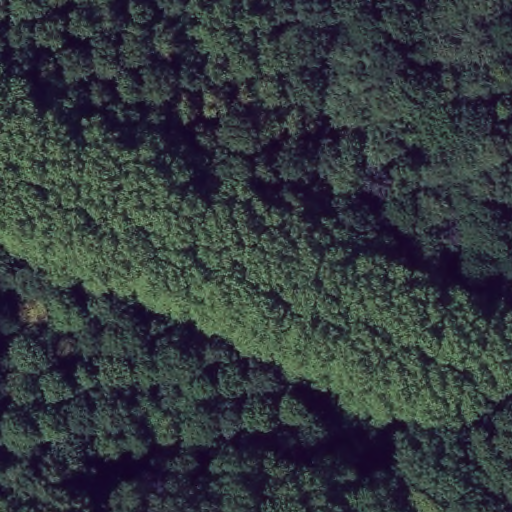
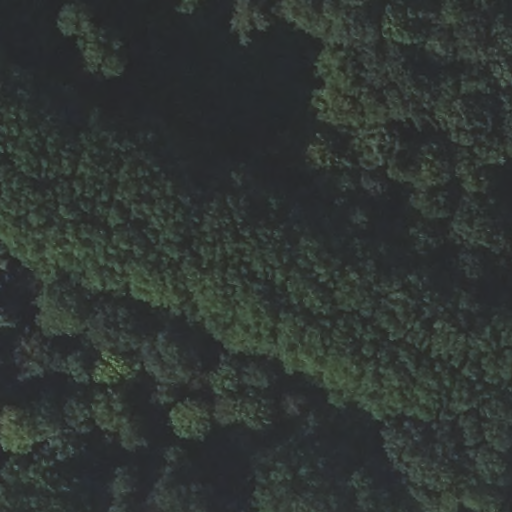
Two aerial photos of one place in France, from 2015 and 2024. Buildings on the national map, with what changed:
unchanged [(512,372),(504,358),(512,354),(512,372)]

